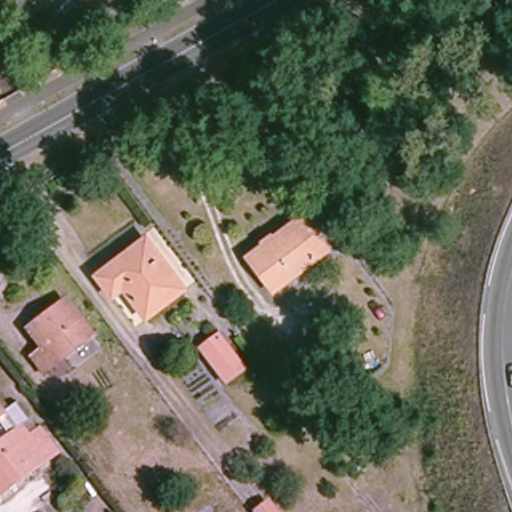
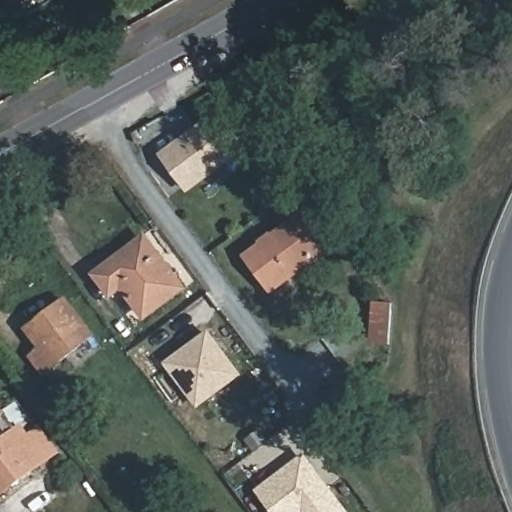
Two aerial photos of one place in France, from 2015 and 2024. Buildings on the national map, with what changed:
new [(219,111),(246,146),(188,190),(168,162),(162,155),(174,146),(219,111)]
unchanged [(300,212),(327,249),(272,290),(245,255),(300,212)]
unchanged [(148,320),(127,293),(113,302),(95,281),(123,260),(150,240),(157,250),(186,291),(148,320)]
unchanged [(41,348),(27,330),(64,302),(78,321),(83,317),(94,332),(41,372),(29,357),(41,348)]
new [(239,375),(199,406),(167,365),(208,334),(239,375)]
demolished [(224,339),(247,372),(229,387),(204,353),(224,339)]
unchanged [(304,370),(326,402),(309,416),(287,382),(304,370)]
unchanged [(0,407),(21,435),(26,432),(33,442),(45,433),(61,455),(0,500),(0,407)]
new [(344,512),(277,512),(268,498),(266,500),(259,491),(304,458),(344,512)]
demolished [(268,498),(277,512),(257,512),(254,508),(268,498)]

